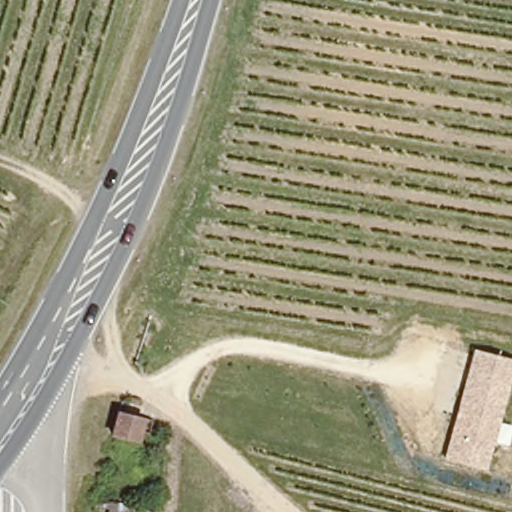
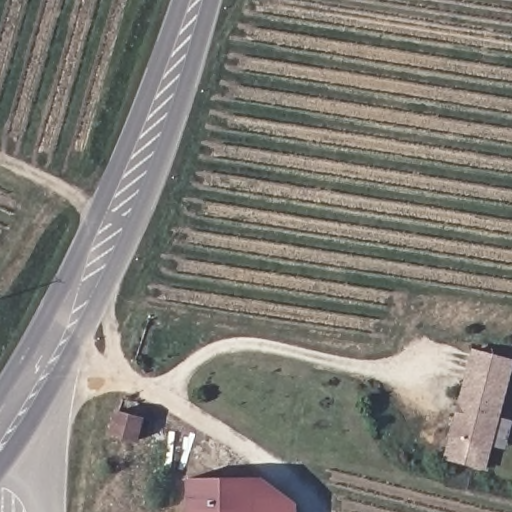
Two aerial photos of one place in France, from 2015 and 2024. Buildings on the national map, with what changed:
unchanged [(512,364),(487,470),(445,460),(472,352),(512,361),(512,364)]
unchanged [(135,433),(133,443),(110,438),(115,415),(120,416),(150,422),(147,435),(135,433)]
new [(295,501),(295,512),(185,512),(185,476),(261,476),(295,501)]
unchanged [(98,512),(99,505),(121,507),(120,512),(98,512)]

